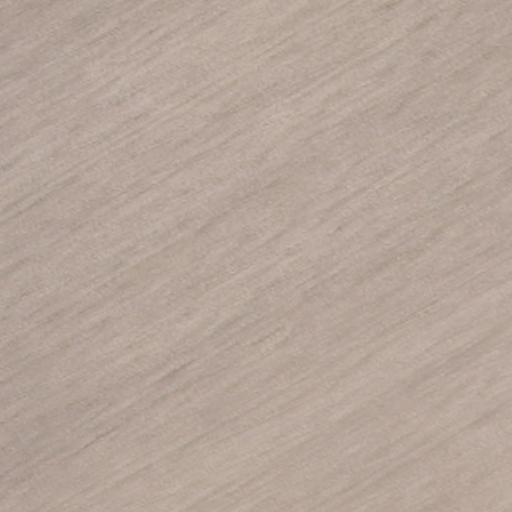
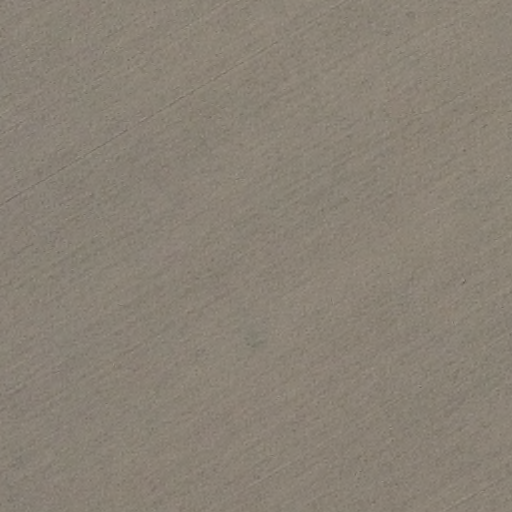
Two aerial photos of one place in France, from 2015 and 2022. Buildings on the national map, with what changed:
[]

